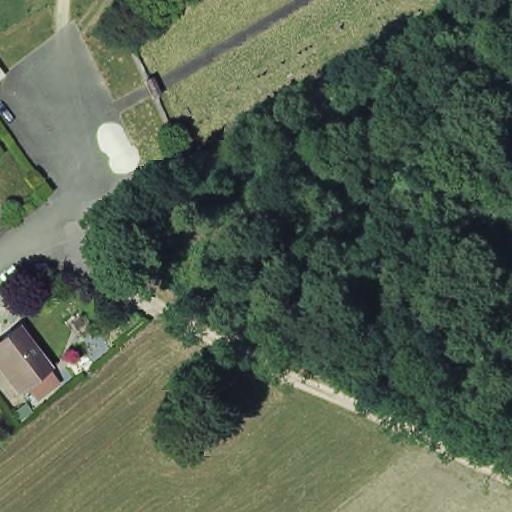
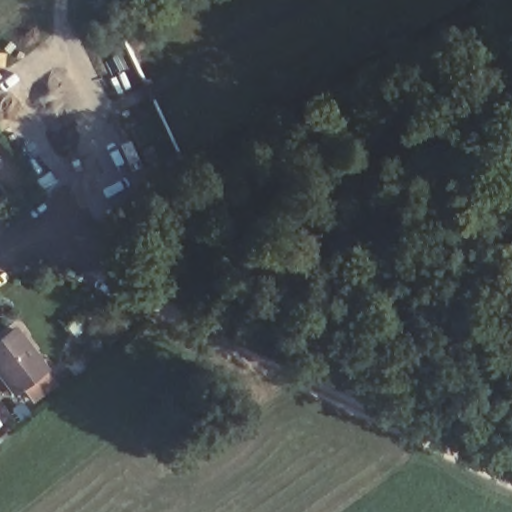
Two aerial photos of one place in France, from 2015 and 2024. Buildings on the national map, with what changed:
unchanged [(0,375),(0,337),(12,327),(45,368),(14,392),(0,375)]

